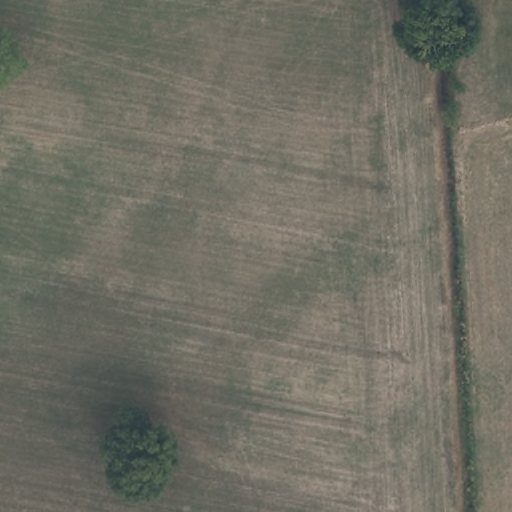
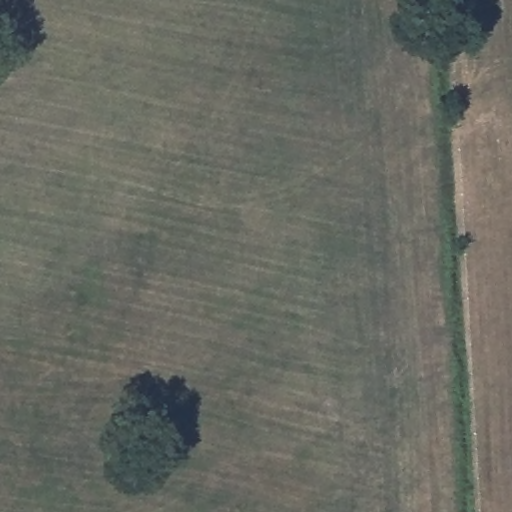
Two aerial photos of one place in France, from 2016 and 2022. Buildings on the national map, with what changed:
[]

